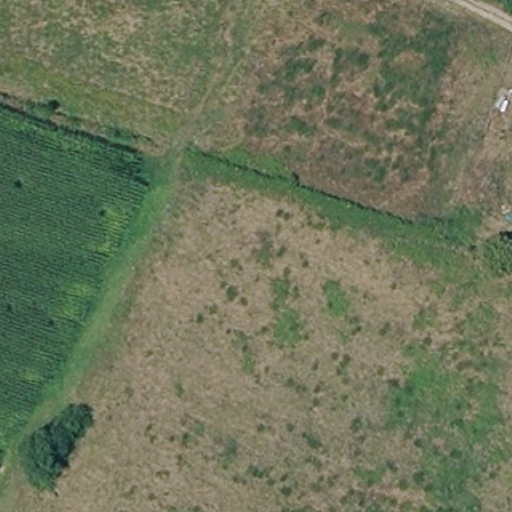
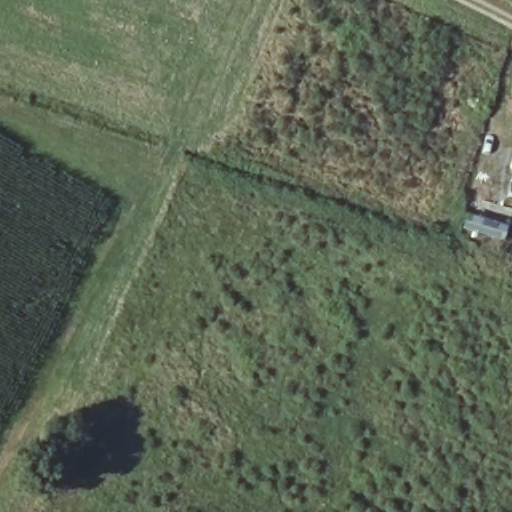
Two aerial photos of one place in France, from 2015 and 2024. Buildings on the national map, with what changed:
unchanged [(512,91),(512,104),(509,103),(512,91)]

